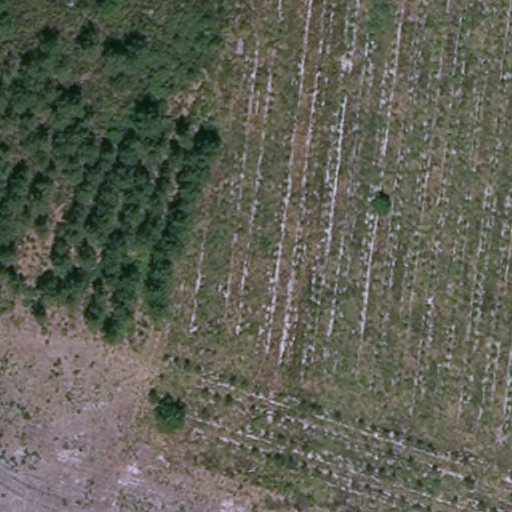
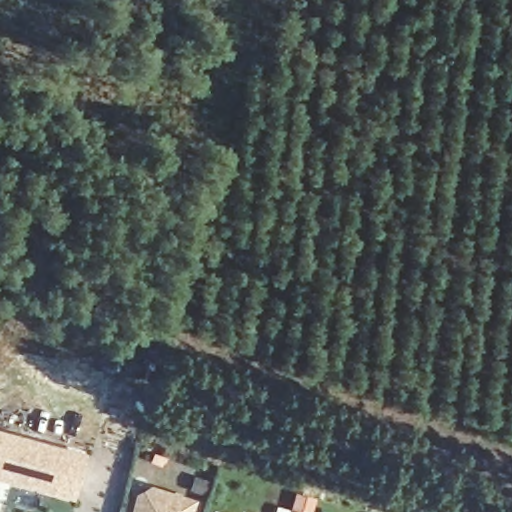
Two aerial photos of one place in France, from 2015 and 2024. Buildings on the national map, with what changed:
new [(53,496),(0,481),(0,431),(66,449),(53,496)]
new [(141,494),(150,489),(193,502),(190,512),(136,512),(141,494)]

